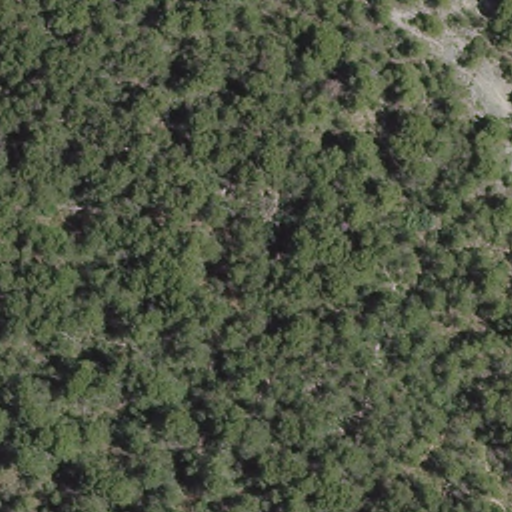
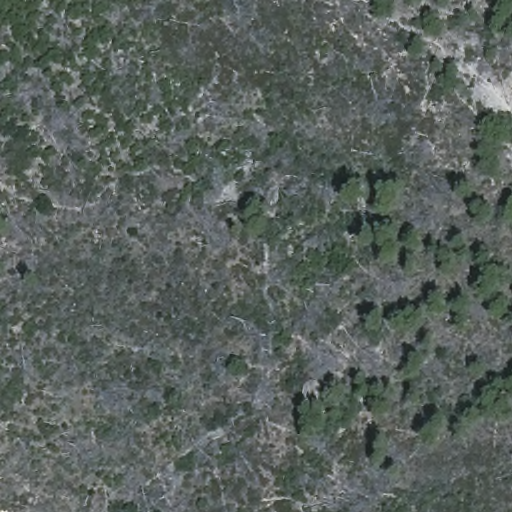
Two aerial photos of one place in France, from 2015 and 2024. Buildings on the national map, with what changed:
unchanged [(299,400),(302,380),(316,381),(315,401),(299,400)]

